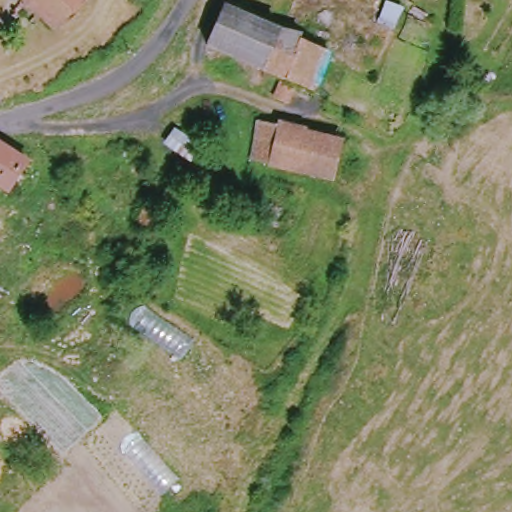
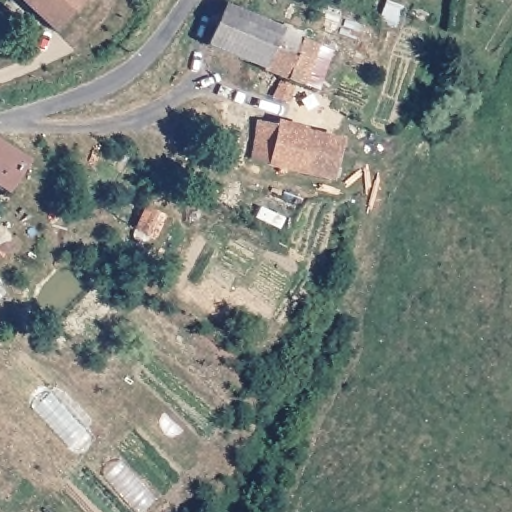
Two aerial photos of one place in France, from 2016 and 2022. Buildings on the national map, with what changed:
unchanged [(51,29),(22,0),(79,0),(51,29)]
unchanged [(225,5),(280,30),(280,28),(303,34),(301,42),(332,54),(317,96),(297,89),(290,106),(275,100),(282,83),(263,74),(206,47),(225,5)]
unchanged [(333,135),(324,172),(268,164),(246,160),(253,121),(274,125),(330,134),(333,135)]
unchanged [(3,145),(25,162),(3,190),(0,188),(0,143),(3,145)]
unchanged [(162,219),(153,236),(135,223),(144,208),(162,219)]

